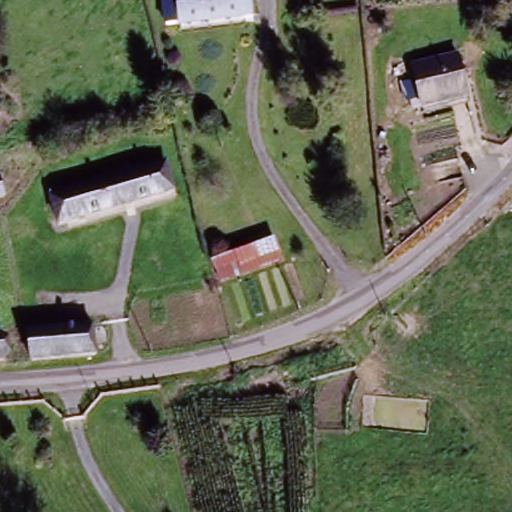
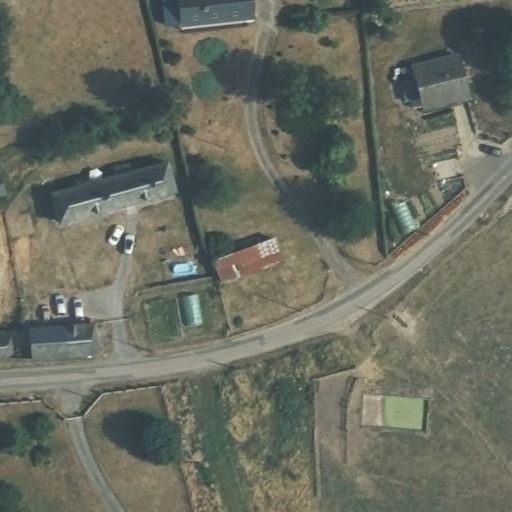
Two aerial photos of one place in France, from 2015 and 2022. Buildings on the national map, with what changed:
unchanged [(258,22),(184,35),(178,3),(192,1),(191,0),(256,0),(258,22)]
unchanged [(425,112),(412,73),(454,59),(467,98),(425,112)]
unchanged [(62,231),(55,206),(170,172),(176,197),(101,219),(62,231)]
unchanged [(1,179),(7,201),(0,203),(0,179),(1,179)]
unchanged [(278,236),(286,256),(249,268),(220,280),(212,259),(242,249),(278,236)]
unchanged [(97,330),(100,357),(33,365),(30,338),(97,330)]
unchanged [(11,340),(13,363),(0,365),(0,341),(11,340)]

